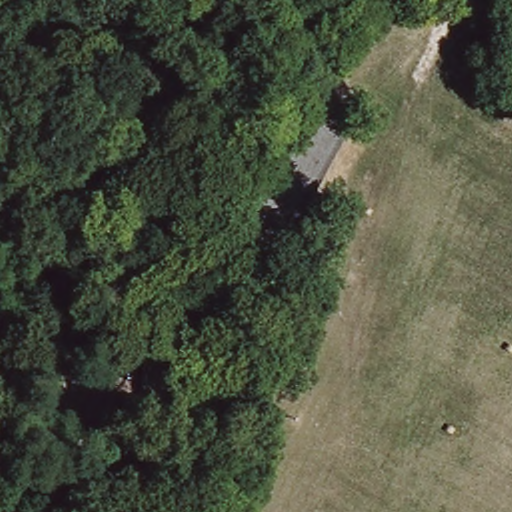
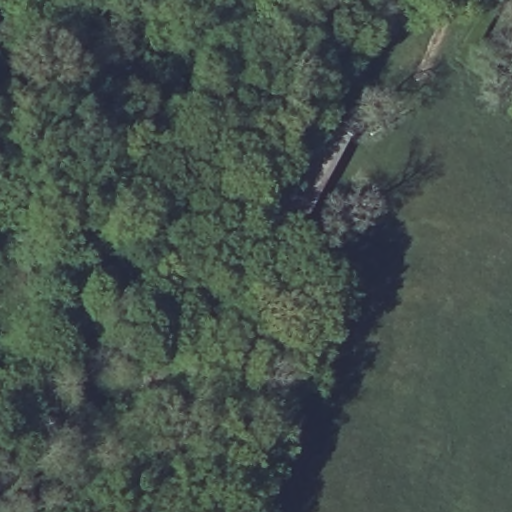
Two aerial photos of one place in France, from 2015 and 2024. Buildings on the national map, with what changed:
unchanged [(290,269),(242,247),(304,99),(354,122),(290,269)]
unchanged [(166,448),(138,449),(136,338),(161,337),(162,359),(166,448)]

